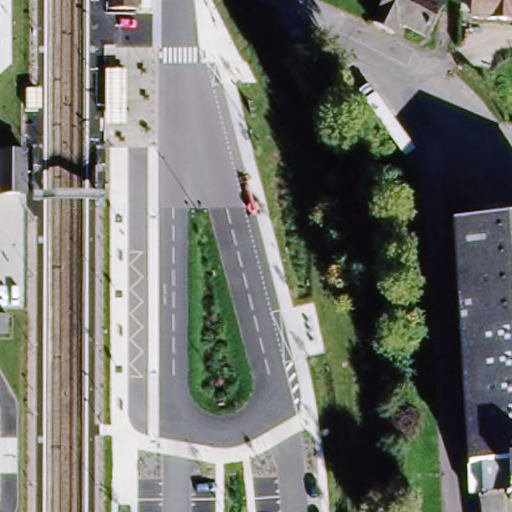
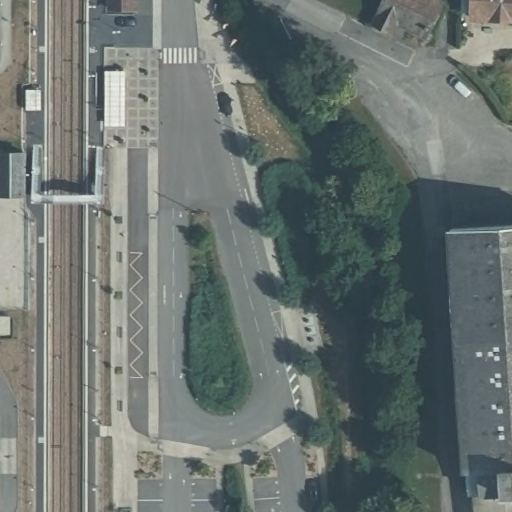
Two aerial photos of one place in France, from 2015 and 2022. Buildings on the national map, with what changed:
unchanged [(138,12),(107,9),(108,0),(138,0),(138,12)]
unchanged [(385,0),(441,0),(444,1),(426,36),(399,22),(393,34),(373,24),(385,0)]
unchanged [(468,0),(512,0),(512,24),(467,22),(468,0)]
unchanged [(24,154),(24,193),(0,193),(0,154),(24,154)]
unchanged [(505,467),(464,467),(449,227),(512,222),(512,493),(508,493),(505,467)]

